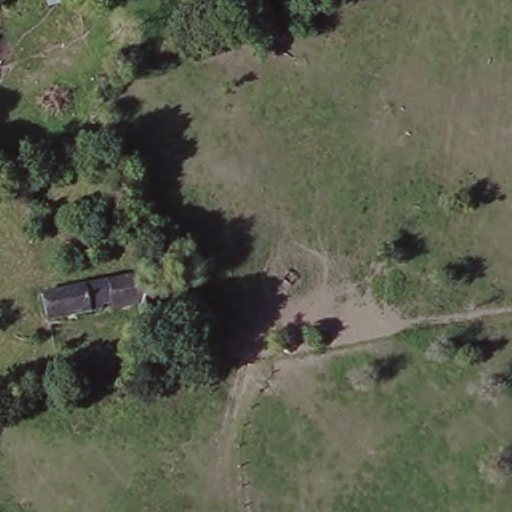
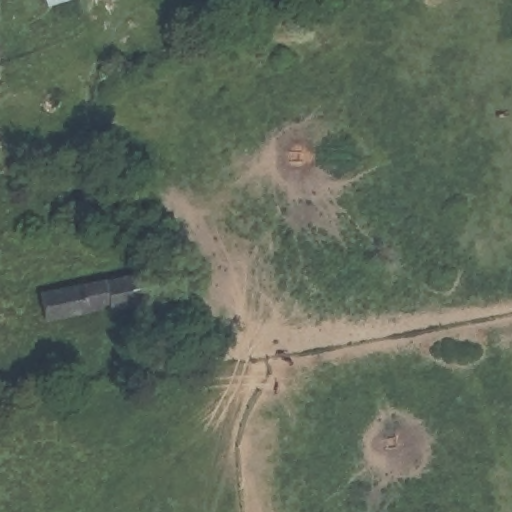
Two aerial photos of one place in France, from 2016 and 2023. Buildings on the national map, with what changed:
unchanged [(145,271),(149,283),(157,280),(161,295),(155,295),(159,311),(139,318),(135,305),(47,324),(40,297),(145,271)]

